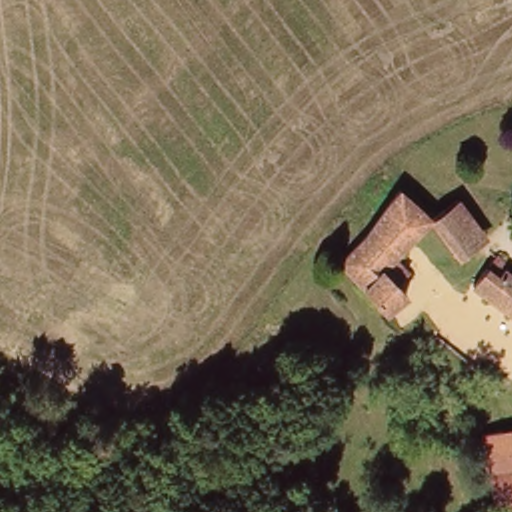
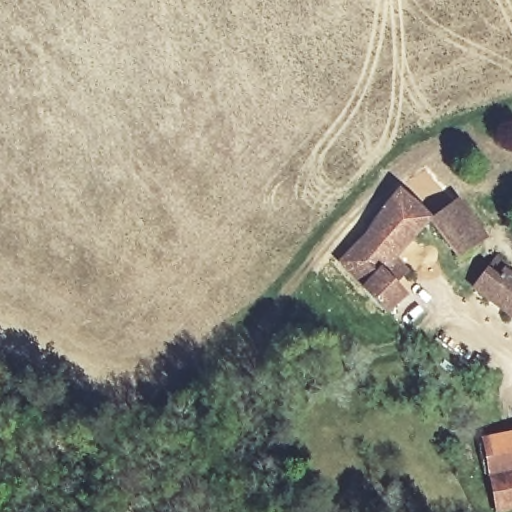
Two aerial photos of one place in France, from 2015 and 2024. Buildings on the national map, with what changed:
unchanged [(369,238),(401,189),(433,216),(396,252),(408,272),(400,284),(407,297),(390,315),(345,263),(345,260),(369,238)]
unchanged [(488,236),(477,244),(466,253),(433,216),(447,205),(457,198),(488,236)]
unchanged [(476,281),(495,256),(503,263),(512,270),(512,310),(476,281)]
unchanged [(494,512),(482,440),(512,434),(512,509),(499,512),(494,512)]

